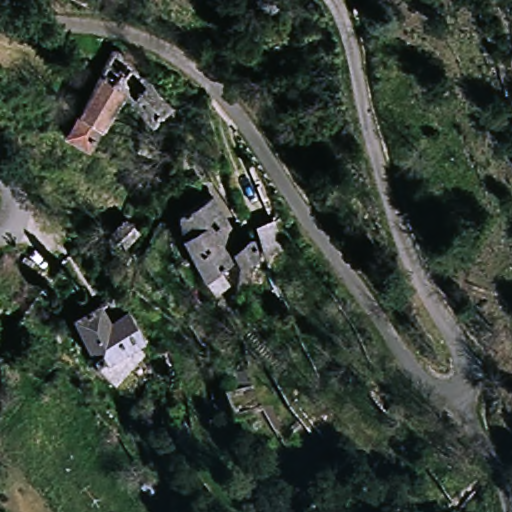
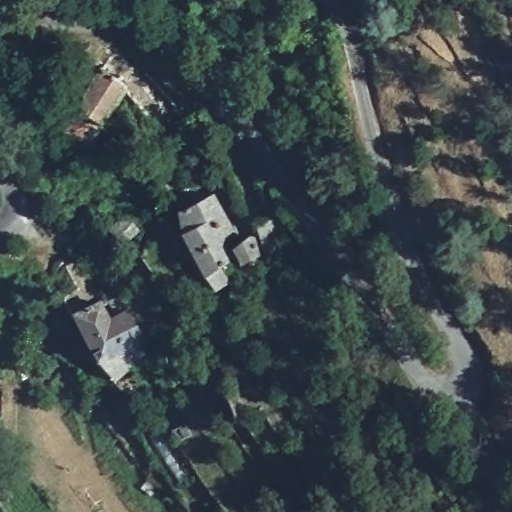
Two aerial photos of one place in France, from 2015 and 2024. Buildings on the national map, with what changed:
unchanged [(153,121),(125,96),(90,146),(71,134),(67,131),(102,73),(117,49),(132,65),(171,104),(153,121)]
unchanged [(245,268),(227,276),(231,286),(217,290),(181,235),(177,213),(215,197),(240,246),(257,235),(255,224),(275,219),(285,249),(245,268)]
unchanged [(115,244),(135,227),(146,241),(128,256),(115,244)]
unchanged [(111,382),(93,361),(73,317),(98,303),(108,320),(127,309),(145,335),(125,347),(132,358),(111,382)]
unchanged [(261,399),(266,411),(244,420),(237,422),(222,382),(248,369),(261,399)]

